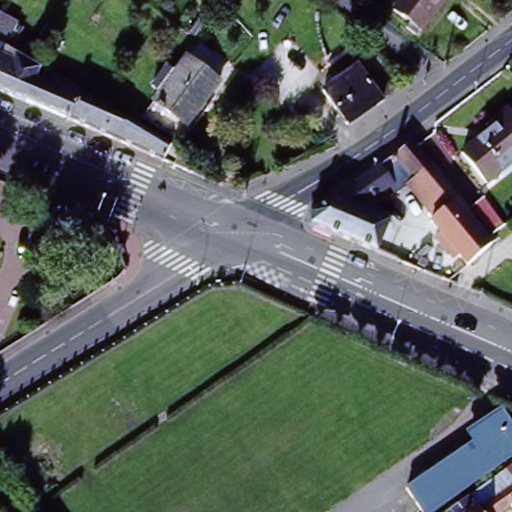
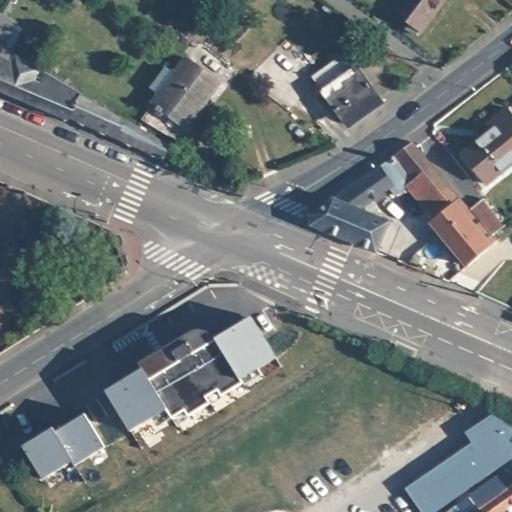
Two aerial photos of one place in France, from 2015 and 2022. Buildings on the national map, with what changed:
unchanged [(408,16),(394,5),(398,0),(439,0),(420,25),(418,24),(414,29),(404,22),(408,16)]
unchanged [(0,87),(0,19),(3,14),(22,25),(8,48),(58,77),(175,146),(167,158),(0,87)]
unchanged [(355,65),(329,86),(325,80),(333,73),(327,63),(361,40),(397,88),(382,100),(355,65)]
unchanged [(215,96),(192,127),(152,99),(185,53),(219,76),(207,91),(215,96)]
unchanged [(355,65),(382,100),(349,125),(323,91),(329,86),(355,65)]
unchanged [(489,119),(504,106),(512,116),(512,159),(485,181),(460,152),(494,125),(489,119)]
unchanged [(415,138),(453,185),(454,186),(461,194),(462,193),(467,198),(443,218),(437,211),(436,213),(408,182),(396,190),(391,186),(364,204),(392,218),(379,249),(313,222),(315,211),(315,210),(415,138)]
unchanged [(470,259),(455,243),(482,216),(481,214),(460,233),(450,223),(470,202),(473,205),(485,195),(506,221),(495,231),(497,233),(470,259)]
new [(142,368),(150,379),(172,365),(162,349),(190,332),(200,348),(215,338),(250,316),(275,356),(241,377),(243,381),(188,415),(185,409),(172,417),(166,408),(130,430),(106,390),(142,368)]
new [(474,442),(467,432),(477,425),(501,408),(512,424),(512,455),(487,472),(485,469),(423,512),(407,489),(484,435),(474,442)]
new [(75,465),(72,461),(43,479),(22,445),(52,427),(55,431),(85,413),(105,446),(75,465)]
demolished [(512,434),(512,449),(486,467),(469,443),(483,433),(477,424),(488,416),(494,425),(502,420),(512,434)]
demolished [(486,467),(450,494),(433,469),(469,443),(486,467)]
unchanged [(510,493),(489,509),(476,491),(512,466),(512,496),(510,493)]
unchanged [(470,490),(485,512),(439,512),(470,490)]

